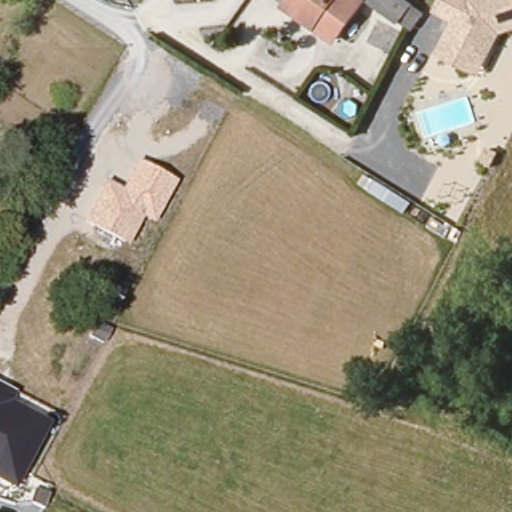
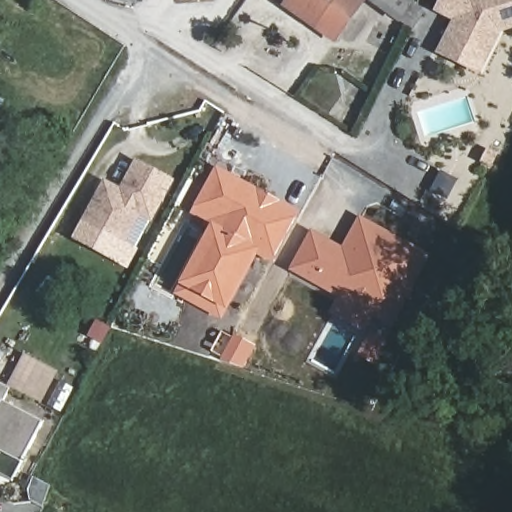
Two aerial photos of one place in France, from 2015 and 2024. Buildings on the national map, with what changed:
unchanged [(290,0),(369,0),(342,38),(321,24),(296,5),(290,0)]
unchanged [(406,14),(384,0),(415,0),(406,14)]
unchanged [(486,36),(470,69),(440,53),(451,31),(456,30),(460,22),(438,11),(444,0),(512,0),(512,28),(486,36)]
unchanged [(105,180),(121,188),(135,159),(176,181),(152,224),(141,218),(126,245),(81,223),(105,180)]
new [(221,320),(174,295),(180,284),(210,228),(189,217),(216,166),(301,212),(272,263),(257,254),(227,311),(221,320)]
new [(341,246),(359,216),(432,255),(392,329),(374,319),(365,334),(330,314),(339,298),(289,271),(311,231),(341,246)]
new [(129,270),(72,239),(81,223),(126,245),(141,218),(150,223),(135,248),(138,250),(129,270)]
unchanged [(0,382),(16,390),(11,401),(50,421),(14,488),(0,481),(0,382)]

